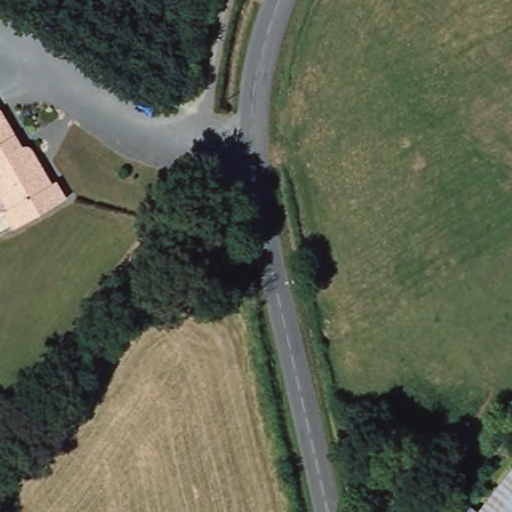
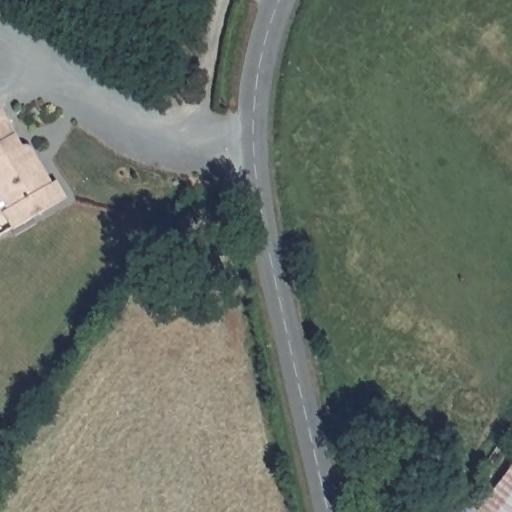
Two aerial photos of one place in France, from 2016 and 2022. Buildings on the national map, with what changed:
unchanged [(65,196),(8,231),(0,218),(0,207),(7,202),(0,190),(0,98),(65,196)]
unchanged [(512,468),(512,496),(498,485),(512,468)]
unchanged [(512,496),(512,512),(478,512),(498,485),(512,496)]
unchanged [(433,512),(446,496),(455,503),(467,512),(433,512)]

